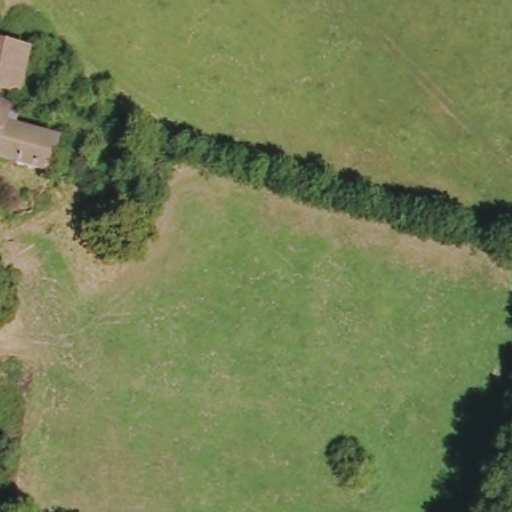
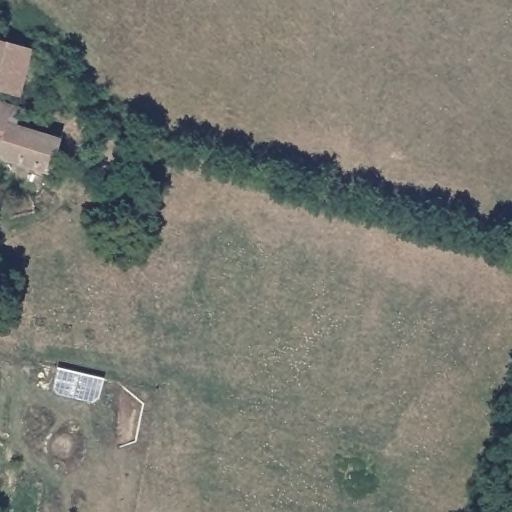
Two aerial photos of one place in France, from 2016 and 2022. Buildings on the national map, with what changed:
unchanged [(0,53),(17,57),(9,97),(0,95),(0,53)]
unchanged [(0,164),(0,107),(9,109),(6,127),(50,137),(41,174),(0,164)]

